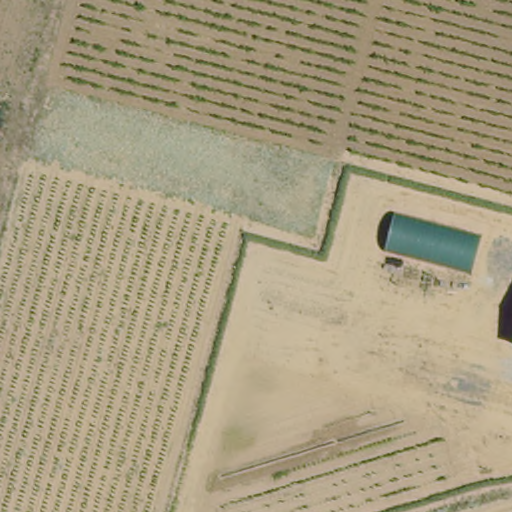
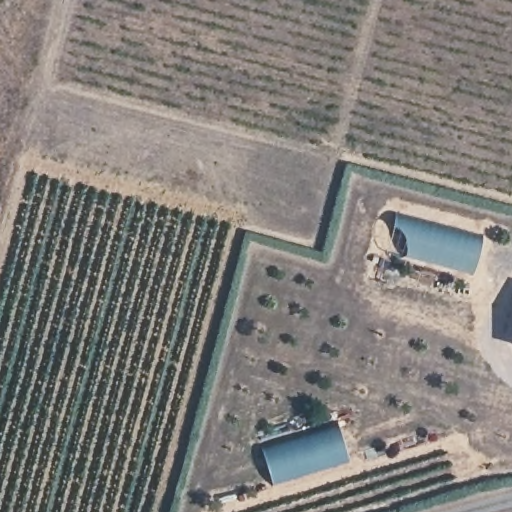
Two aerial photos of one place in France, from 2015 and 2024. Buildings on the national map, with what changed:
unchanged [(395,215),(481,239),(473,269),(387,246),(395,215)]
new [(347,458),(271,482),(261,447),(337,424),(347,458)]

